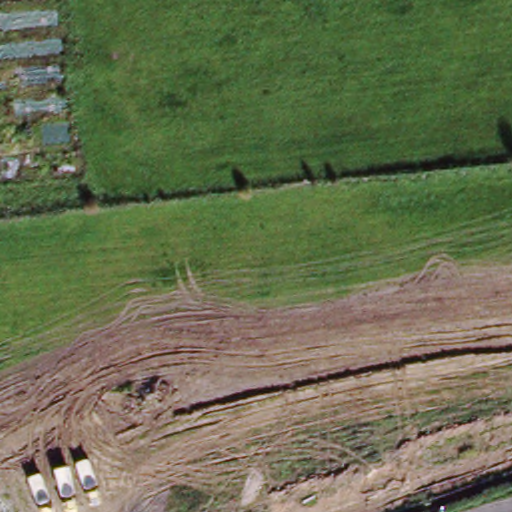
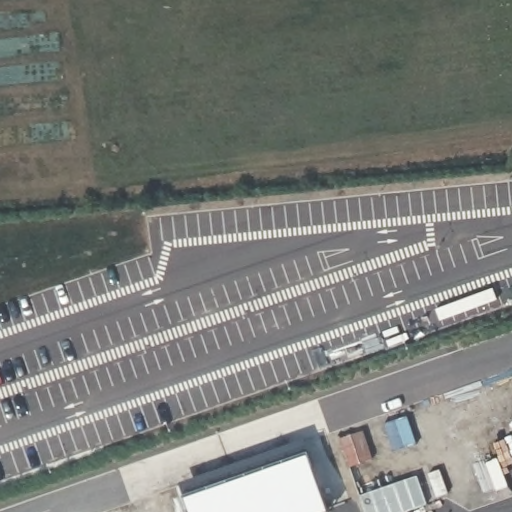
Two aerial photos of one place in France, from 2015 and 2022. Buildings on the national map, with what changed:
new [(310,448),(329,503),(307,511),(308,512),(197,512),(189,490),(310,448)]

